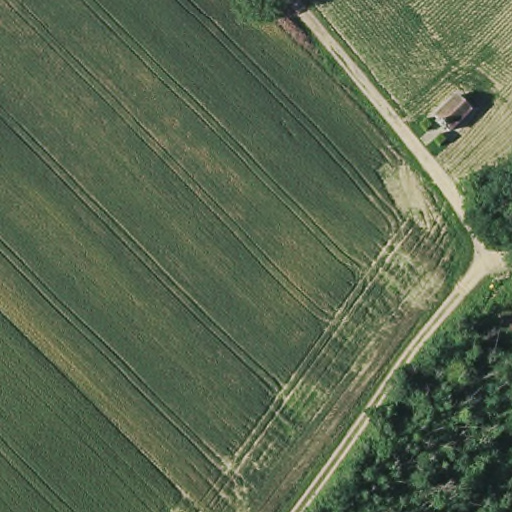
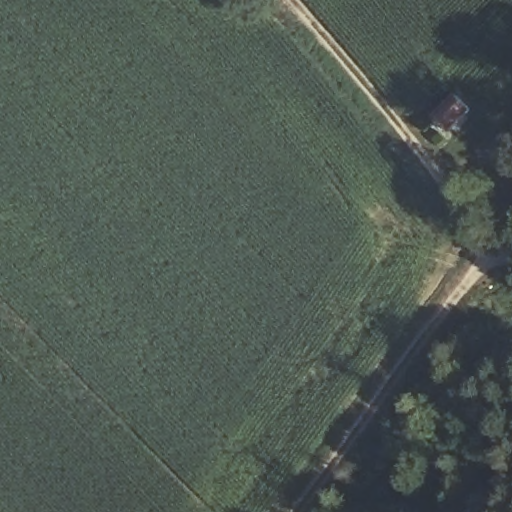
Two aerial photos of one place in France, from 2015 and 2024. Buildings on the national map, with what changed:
unchanged [(440,124),(433,116),(455,92),(470,107),(461,116),(448,131),(440,124)]

